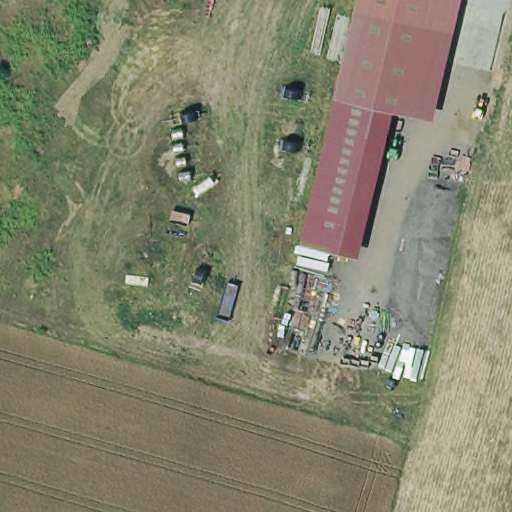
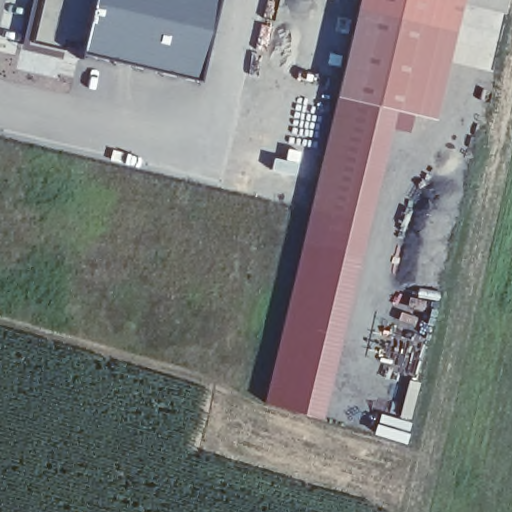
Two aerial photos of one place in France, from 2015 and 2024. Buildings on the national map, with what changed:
new [(28,45),(39,0),(220,0),(199,84),(28,45)]
unchanged [(462,0),(454,31),(356,9),(358,0),(462,0)]
unchanged [(395,111),(336,98),(356,9),(454,31),(434,120),(395,111)]
new [(323,422),(264,407),(336,98),(395,111),(323,422)]

